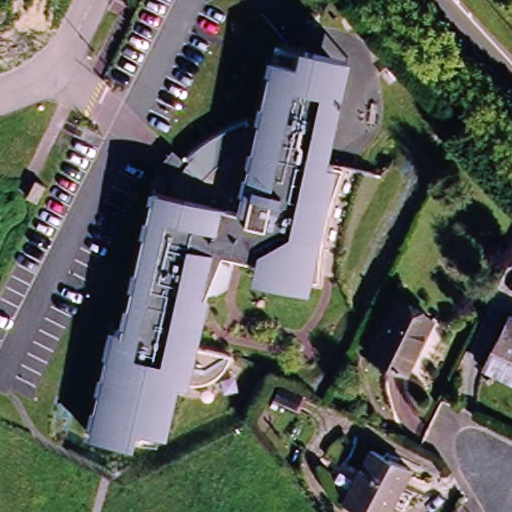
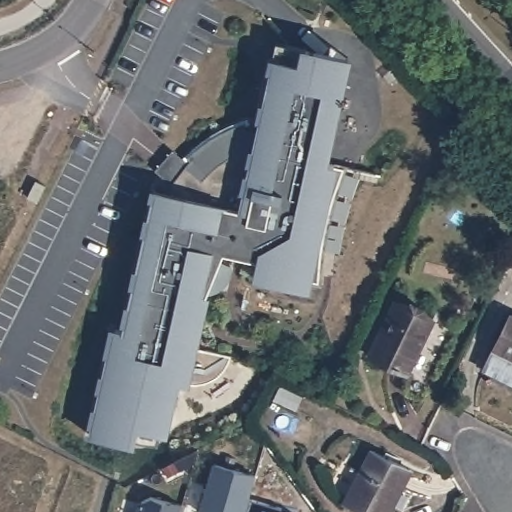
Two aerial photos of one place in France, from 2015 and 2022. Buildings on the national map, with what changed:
unchanged [(255,279),(261,259),(223,254),(208,345),(235,353),(218,388),(193,388),(182,387),(174,434),(140,430),(136,443),(86,431),(105,329),(117,329),(153,187),(241,207),(273,41),(353,58),(337,161),(344,167),(318,285),(255,279)]
unchanged [(433,319),(408,373),(369,355),(396,302),(433,319)]
unchanged [(512,387),(484,373),(510,319),(512,320),(512,387)]
unchanged [(391,512),(362,512),(345,504),(371,451),(411,470),(391,512)]
new [(214,461),(256,473),(244,512),(206,512),(201,511),(214,461)]
new [(137,512),(143,493),(181,504),(179,512),(137,512)]

